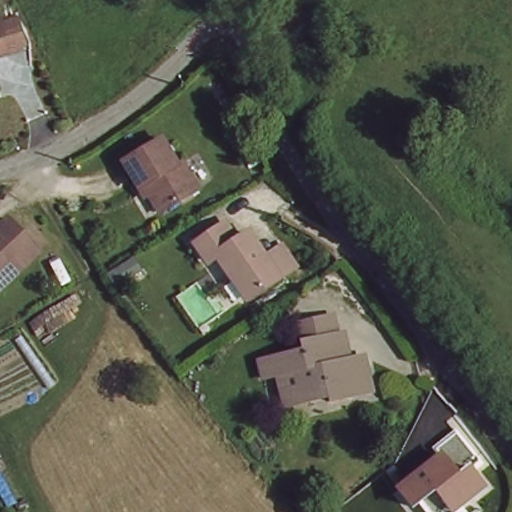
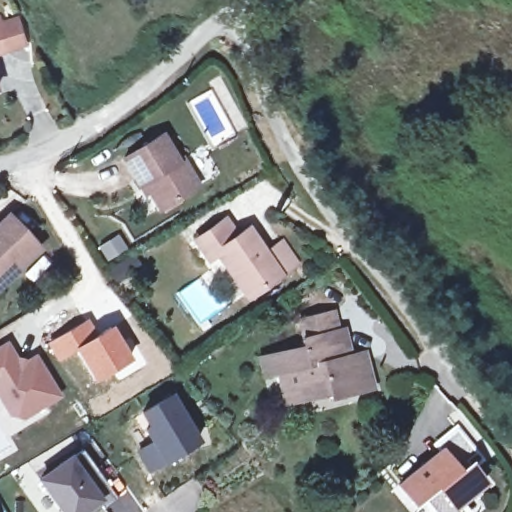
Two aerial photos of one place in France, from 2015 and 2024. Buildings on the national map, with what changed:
unchanged [(3,42),(0,43),(0,30),(3,42)]
unchanged [(153,189),(147,193),(125,154),(165,132),(180,161),(186,158),(202,185),(163,207),(153,189)]
unchanged [(296,254),(280,265),(246,288),(219,247),(212,251),(200,232),(230,212),(242,231),(252,224),(268,249),(286,238),(296,254)]
unchanged [(40,248),(0,286),(0,222),(8,214),(40,248)]
unchanged [(336,329),(343,327),(347,348),(321,353),(322,363),(366,355),(372,389),(334,396),(332,390),(312,393),(312,390),(284,395),(277,368),(261,371),(258,353),(299,346),(297,337),(303,336),(300,318),(305,317),(333,312),(336,329)]
new [(9,343),(17,359),(30,361),(38,356),(62,398),(25,423),(10,418),(0,403),(0,348),(9,343)]
new [(147,443),(141,431),(148,427),(140,413),(173,394),(201,443),(143,474),(131,452),(147,443)]
unchanged [(490,483),(465,504),(471,512),(427,512),(419,502),(413,507),(395,485),(437,451),(433,445),(458,425),(485,461),(478,467),(490,483)]
new [(112,499),(98,511),(95,508),(90,512),(58,512),(35,480),(77,452),(112,499)]

